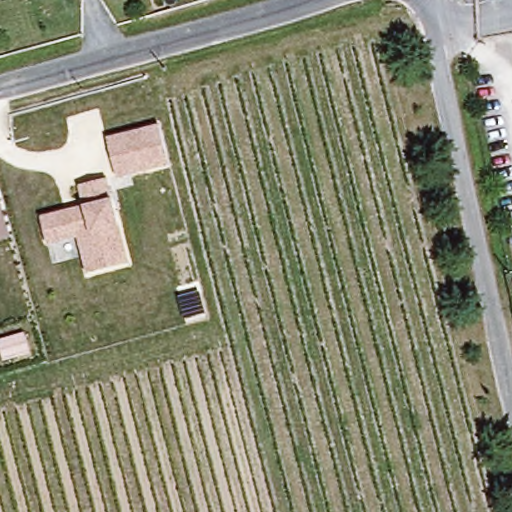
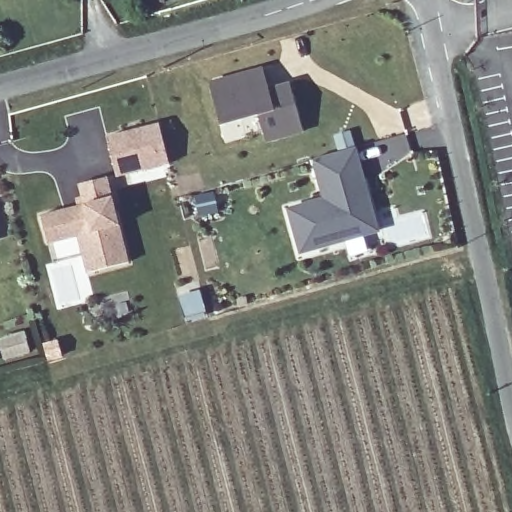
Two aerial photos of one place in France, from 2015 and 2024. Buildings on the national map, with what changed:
new [(244,119),(223,125),(211,84),(266,68),(274,98),(295,92),(299,109),(305,129),(268,140),(265,131),(249,135),(244,119)]
unchanged [(158,121),(169,164),(117,176),(106,135),(158,121)]
new [(381,231),(298,255),(285,209),(321,197),(310,158),(356,145),(381,231)]
unchanged [(108,175),(131,263),(87,274),(78,237),(48,245),(40,214),(83,202),(79,182),(108,175)]
unchanged [(18,313),(21,324),(15,326),(16,333),(26,330),(32,352),(2,360),(0,350),(0,319),(18,313)]

